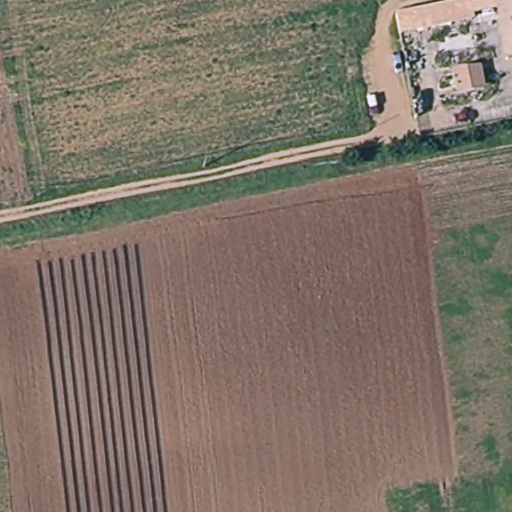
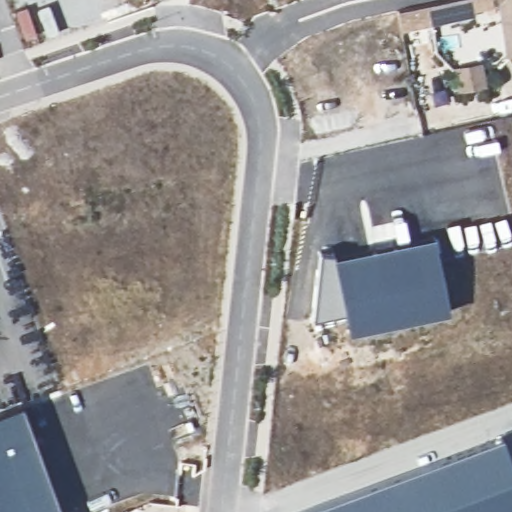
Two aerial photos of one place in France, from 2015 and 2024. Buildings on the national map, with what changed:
unchanged [(498,9),(475,13),(476,17),(402,32),(398,11),(452,0),(512,0),(512,57),(504,59),(498,9)]
unchanged [(458,66),(486,61),(491,86),(463,92),(458,66)]
new [(349,332),(344,310),(313,317),(318,252),(333,252),(334,257),(435,236),(450,311),(349,332)]
new [(22,405),(61,512),(0,512),(0,412),(22,405)]
new [(512,463),(512,512),(303,512),(503,437),(512,463)]

